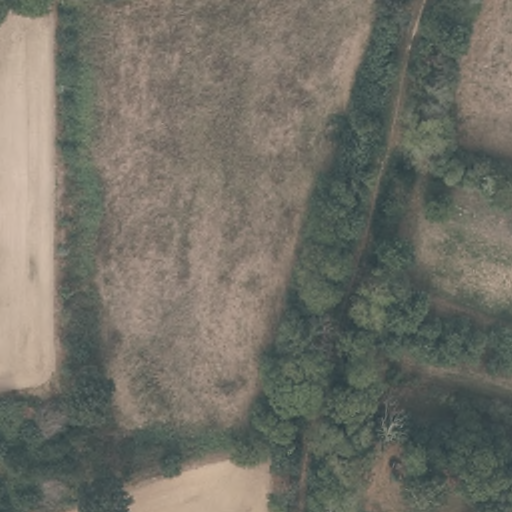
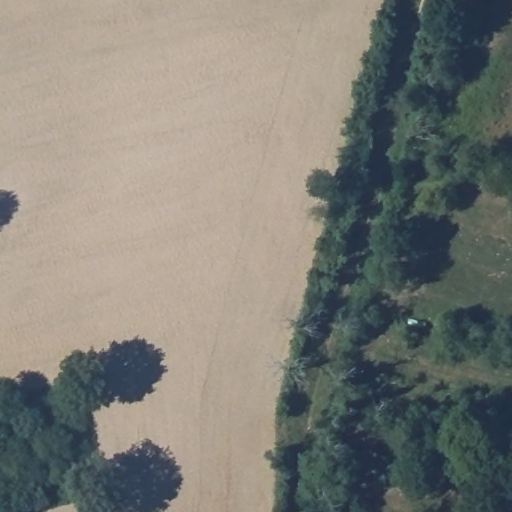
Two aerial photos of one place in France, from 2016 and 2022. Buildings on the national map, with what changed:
[]

